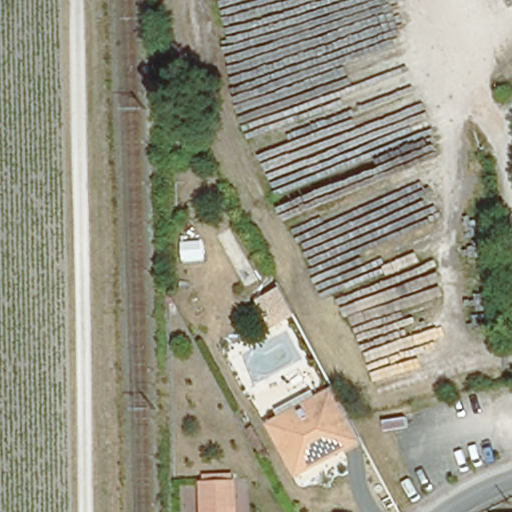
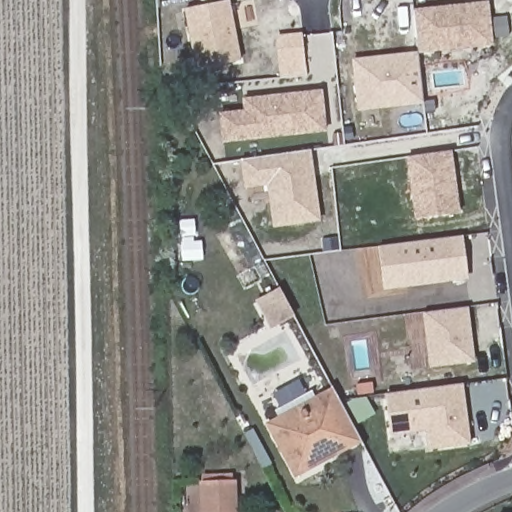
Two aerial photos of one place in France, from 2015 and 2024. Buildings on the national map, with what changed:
new [(242,60),(212,66),(208,43),(193,46),(185,8),(227,0),(230,0),(242,60)]
new [(424,103),(359,110),(354,59),(419,52),(414,9),(488,2),(493,45),(419,53),(424,103)]
new [(302,32),(306,74),(280,76),(276,35),(302,32)]
new [(321,91),(325,129),(228,142),(224,112),(245,111),(244,100),(321,91)]
new [(248,184),(245,160),(308,151),(317,220),(277,225),(271,181),(248,184)]
new [(452,151),(460,214),(416,220),(409,157),(452,151)]
new [(387,256),(386,246),(464,236),(469,279),(390,289),(388,273),(381,274),(378,257),(387,256)]
new [(281,289),(294,314),(274,325),(260,300),(281,289)]
new [(475,362),(431,368),(424,313),(468,306),(475,362)]
new [(465,383),(473,445),(427,451),(425,431),(391,436),(385,394),(465,383)]
unchanged [(342,448),(298,472),(277,431),(273,424),(316,401),(337,390),(350,414),(362,437),(342,448)]
unchanged [(203,474),(238,473),(238,480),(239,512),(204,512),(203,480),(203,474)]

